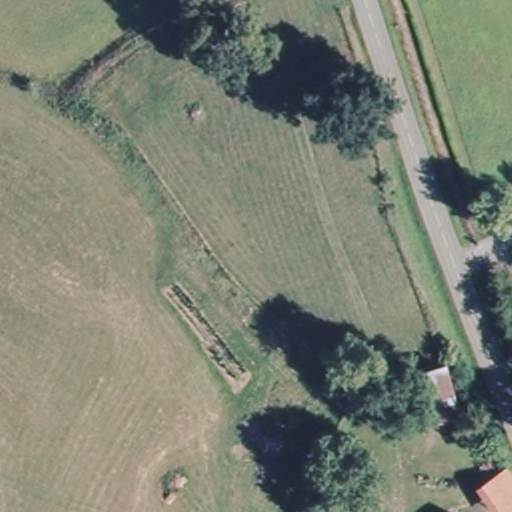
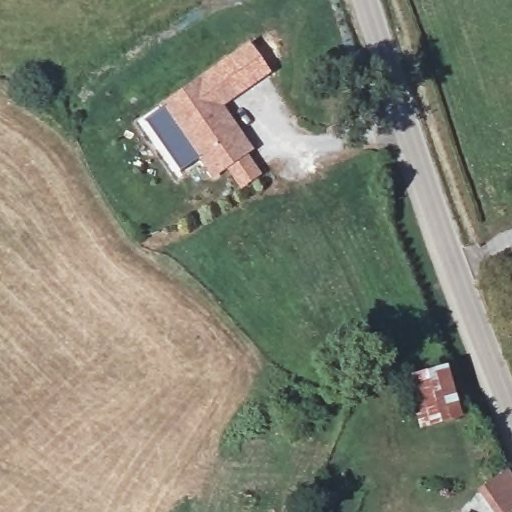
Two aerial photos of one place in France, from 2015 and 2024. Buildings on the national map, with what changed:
new [(211,178),(183,139),(166,149),(151,129),(169,118),(161,105),(229,58),(252,88),(222,108),(252,150),(211,178)]
unchanged [(427,436),(406,377),(443,359),(467,418),(427,436)]
unchanged [(512,510),(509,512),(490,512),(478,491),(507,474),(512,484),(512,510)]

